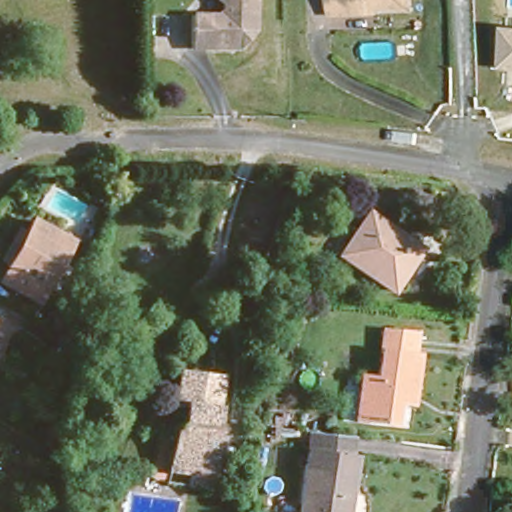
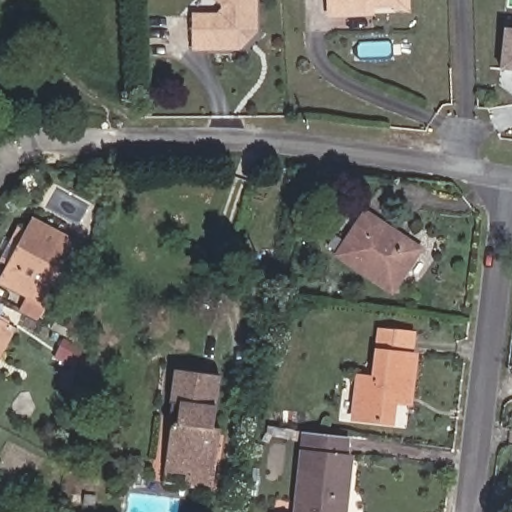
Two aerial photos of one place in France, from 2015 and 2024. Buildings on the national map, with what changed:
unchanged [(257,35),(250,37),(244,46),(242,54),(210,56),(196,57),(195,23),(208,22),(218,22),(224,16),(224,10),(217,5),(217,0),(255,0),(257,35)]
unchanged [(326,20),(325,0),(405,0),(406,16),(388,10),(370,10),(370,18),(361,19),(326,20)]
unchanged [(500,71),(504,27),(512,28),(512,72),(500,71)]
unchanged [(364,206),(422,249),(391,287),(335,244),(364,206)]
unchanged [(0,259),(0,245),(13,224),(21,227),(29,214),(70,237),(34,300),(2,281),(0,280),(0,263),(1,260),(0,259)]
unchanged [(0,332),(0,318),(5,320),(0,332)]
unchanged [(405,404),(402,425),(345,417),(351,371),(368,373),(374,326),(418,332),(430,333),(426,360),(422,392),(420,406),(405,404)]
unchanged [(156,480),(157,466),(163,420),(175,421),(175,409),(165,408),(170,365),(218,370),(211,418),(220,420),(212,471),(210,485),(156,480)]
unchanged [(305,427),(355,434),(352,450),(343,512),(291,512),(302,443),(305,427)]

